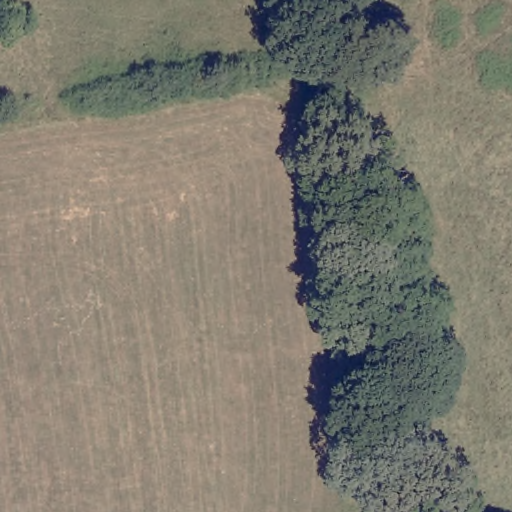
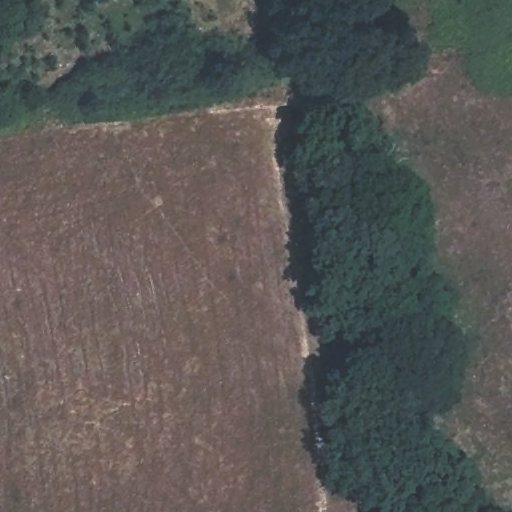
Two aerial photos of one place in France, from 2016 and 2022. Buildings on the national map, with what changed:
[]

